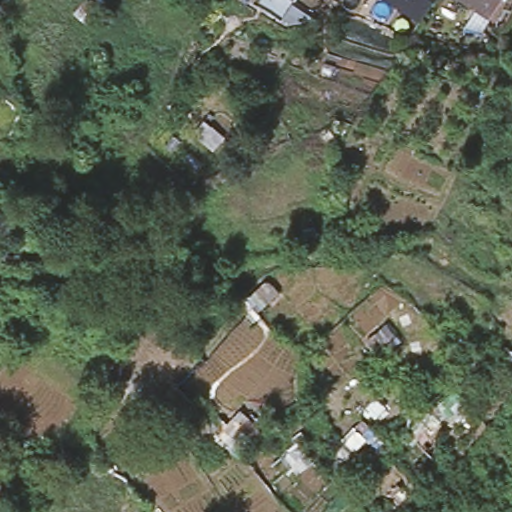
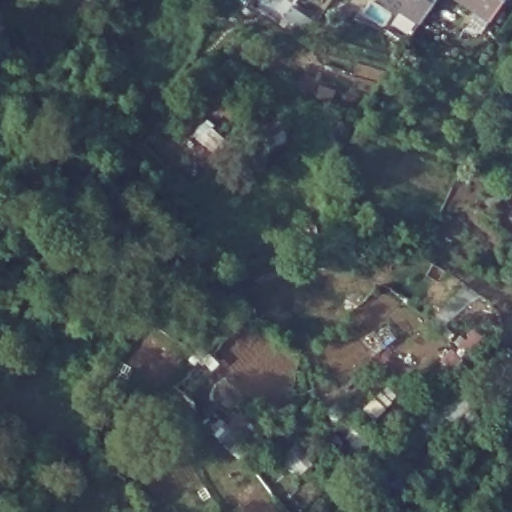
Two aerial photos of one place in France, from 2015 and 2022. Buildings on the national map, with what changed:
unchanged [(386,0),(431,0),(417,21),(386,0)]
unchanged [(487,18),(460,0),(499,0),(487,18)]

